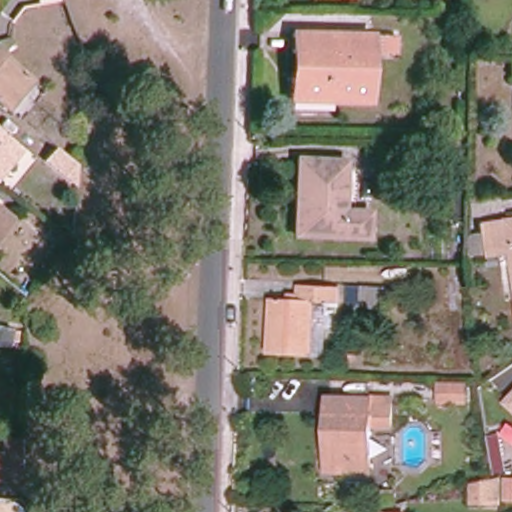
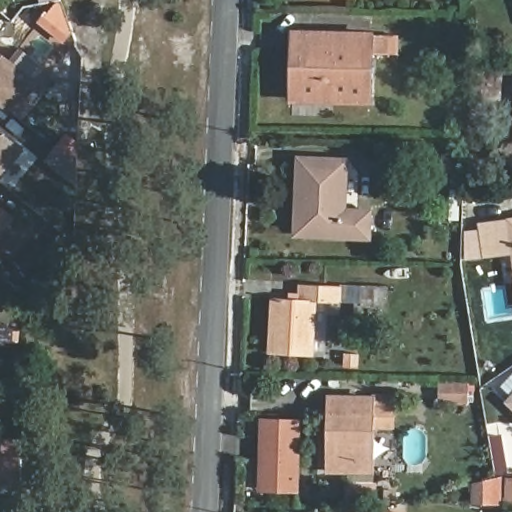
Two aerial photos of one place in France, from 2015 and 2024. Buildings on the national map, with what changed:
unchanged [(372,34),(400,35),(400,54),(372,53),(371,101),(292,99),(293,78),(294,53),(295,32),(372,34)]
unchanged [(0,101),(0,53),(33,79),(10,109),(0,101)]
unchanged [(0,177),(0,132),(22,150),(0,177)]
unchanged [(292,208),(295,158),(342,160),(340,209),(367,210),(366,237),(298,235),(292,235),(292,208)]
unchanged [(0,233),(0,209),(12,218),(0,233)]
unchanged [(501,246),(486,248),(467,251),(467,229),(482,227),(482,225),(482,222),(497,220),(512,218),(512,245),(501,246)]
unchanged [(268,298),(295,299),(296,284),(336,286),(335,302),(310,301),(307,355),(265,353),(268,298)]
unchanged [(342,300),(343,288),(357,288),(357,301),(342,300)]
unchanged [(12,340),(0,339),(0,326),(14,328),(12,340)]
unchanged [(481,389),(482,402),(453,402),(453,384),(480,385),(481,389)]
unchanged [(504,399),(512,391),(512,407),(504,399)]
unchanged [(355,470),(335,470),(330,470),(331,436),(331,398),(372,398),(372,462),(372,470),(355,470)]
new [(298,491),(258,490),(261,417),(301,418),(298,491)]
unchanged [(17,477),(0,477),(0,436),(19,437),(17,477)]
unchanged [(502,477),(502,479),(501,502),(474,501),(474,484),(502,477)]
unchanged [(507,498),(507,479),(512,479),(512,498),(507,498)]

